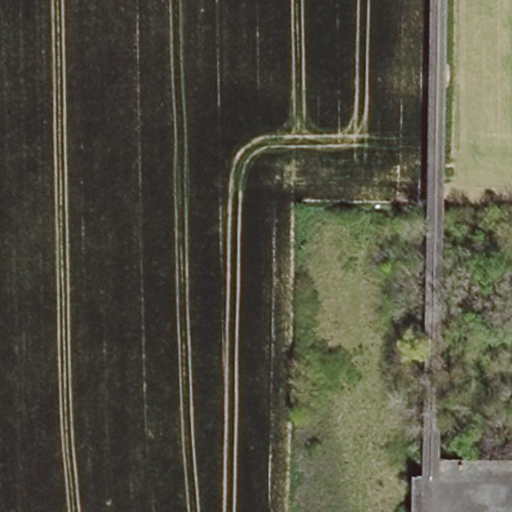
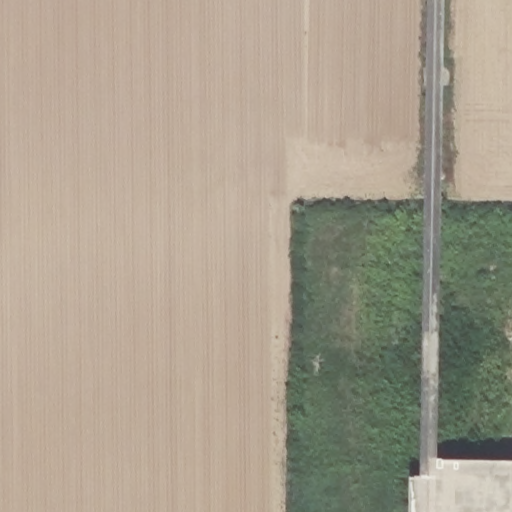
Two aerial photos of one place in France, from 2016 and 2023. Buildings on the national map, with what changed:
unchanged [(408,477),(426,478),(433,458),(512,459),(512,512),(408,512),(408,477)]

